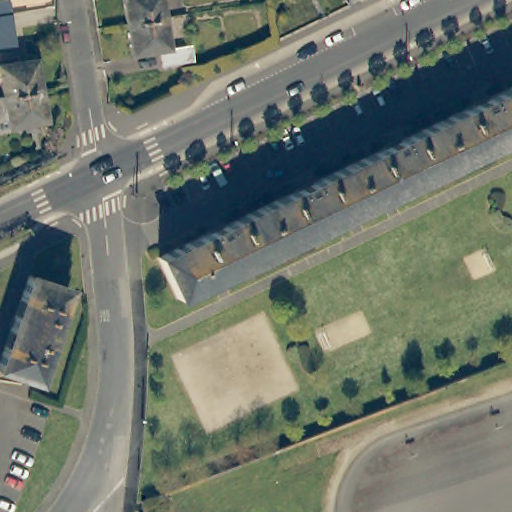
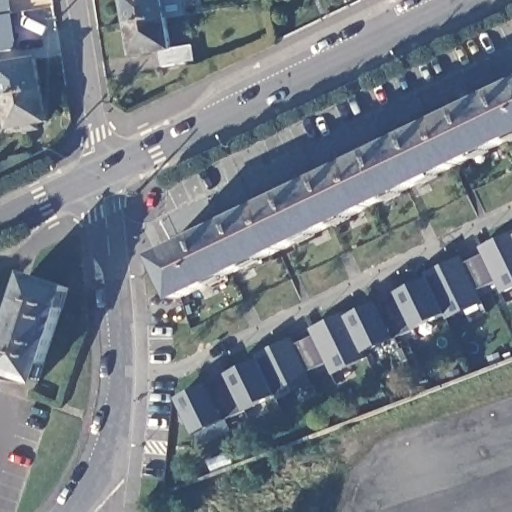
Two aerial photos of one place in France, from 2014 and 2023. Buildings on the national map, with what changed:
unchanged [(0,51),(0,1),(5,0),(12,0),(14,13),(19,48),(0,51)]
unchanged [(123,0),(161,0),(165,23),(127,29),(123,0)]
unchanged [(165,23),(170,53),(191,50),(193,65),(163,71),(160,56),(132,60),(127,29),(165,23)]
unchanged [(10,102),(3,70),(41,65),(46,95),(10,102)]
unchanged [(512,89),(512,139),(456,165),(438,125),(512,89)]
unchanged [(52,126),(43,129),(44,134),(32,135),(31,130),(15,134),(10,102),(46,95),(52,126)]
unchanged [(368,208),(351,167),(438,125),(456,165),(368,208)]
unchanged [(281,250),(263,210),(351,167),(368,208),(281,250)]
unchanged [(281,250),(180,299),(160,260),(263,210),(281,250)]
new [(496,280),(479,290),(485,301),(448,318),(447,314),(415,330),(396,338),(370,351),(369,357),(332,375),(326,363),(310,371),(315,383),(278,400),(277,395),(245,410),(228,421),(195,435),(176,399),(210,382),(214,392),(231,383),(227,375),(259,358),(252,355),(292,337),(295,345),(312,336),(309,329),(345,312),(348,316),(380,301),(384,310),(400,303),(395,292),(428,277),(420,275),(462,256),(465,263),(482,255),(478,248),(512,231),(512,288),(502,293),(496,280)]
unchanged [(70,290),(40,385),(0,371),(0,367),(30,277),(70,290)]

